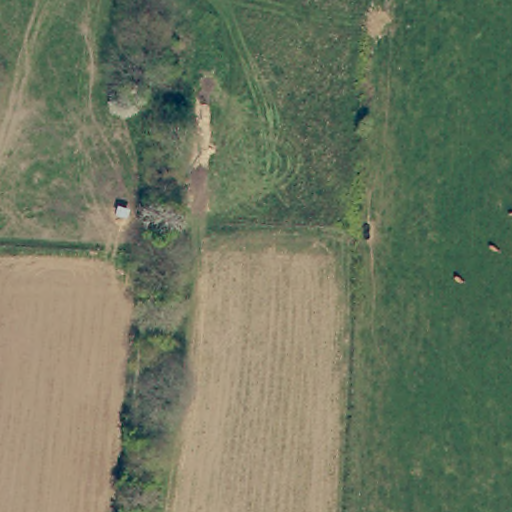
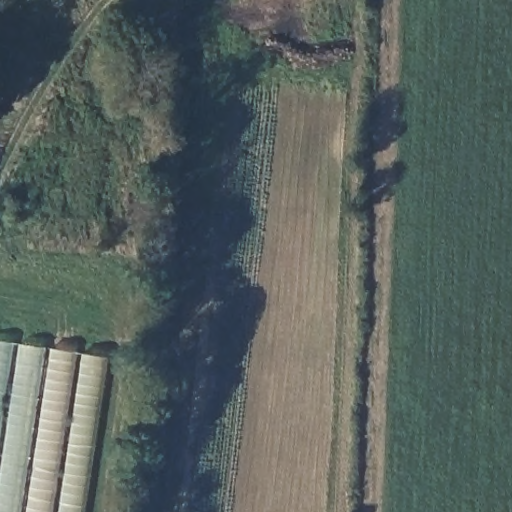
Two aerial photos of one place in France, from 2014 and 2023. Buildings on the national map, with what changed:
new [(0,512),(0,342),(107,358),(83,512),(0,512)]

